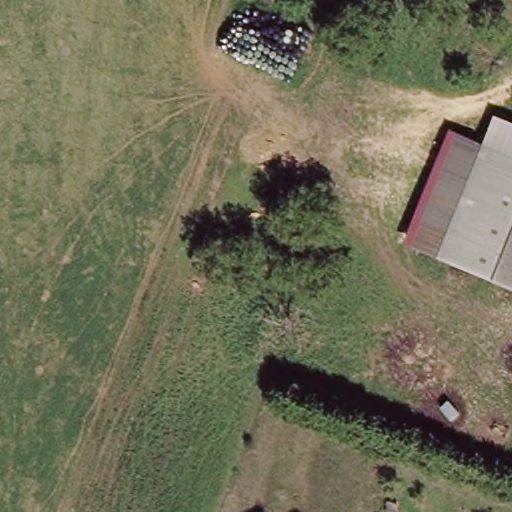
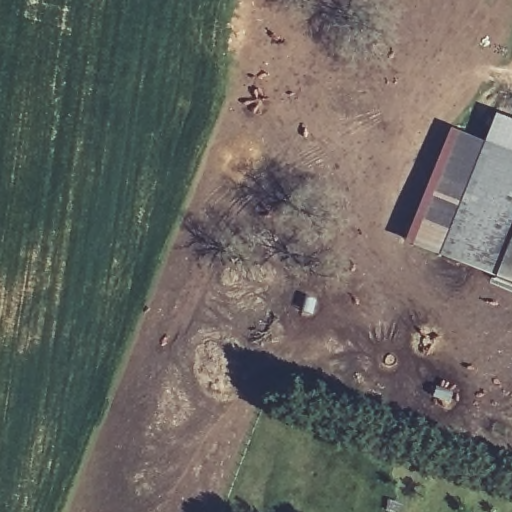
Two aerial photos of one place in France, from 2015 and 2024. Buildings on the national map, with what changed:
unchanged [(485,142),(496,115),(512,121),(512,286),(438,255),(412,245),(459,131),(485,142)]

